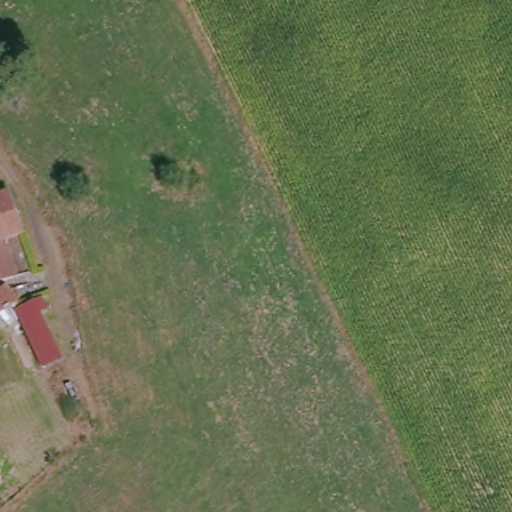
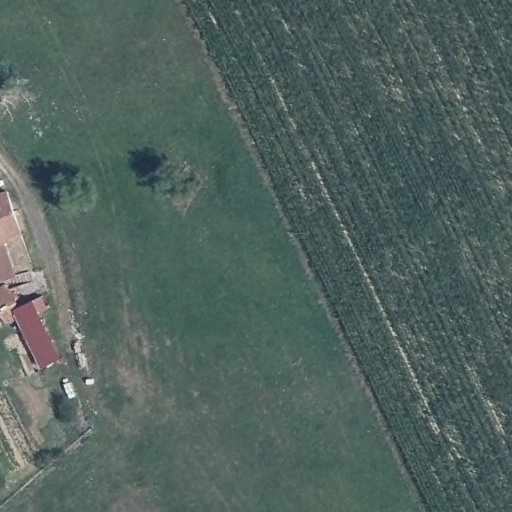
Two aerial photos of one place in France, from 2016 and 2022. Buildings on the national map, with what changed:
unchanged [(4,240),(0,242),(0,193),(10,190),(24,233),(4,240)]
unchanged [(14,275),(0,280),(0,242),(4,240),(14,275)]
unchanged [(19,304),(41,294),(48,309),(40,312),(60,355),(41,366),(18,318),(9,322),(0,312),(0,288),(8,284),(19,304)]

